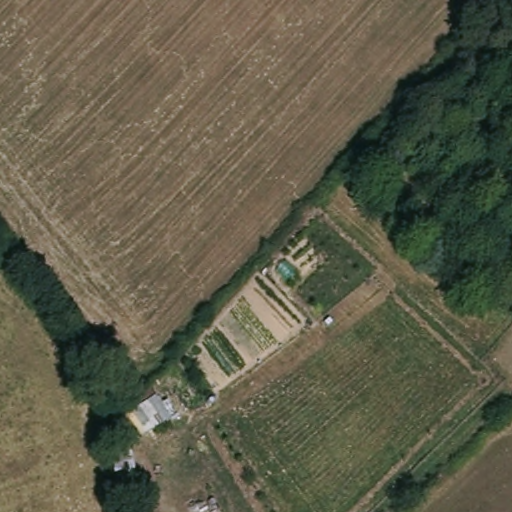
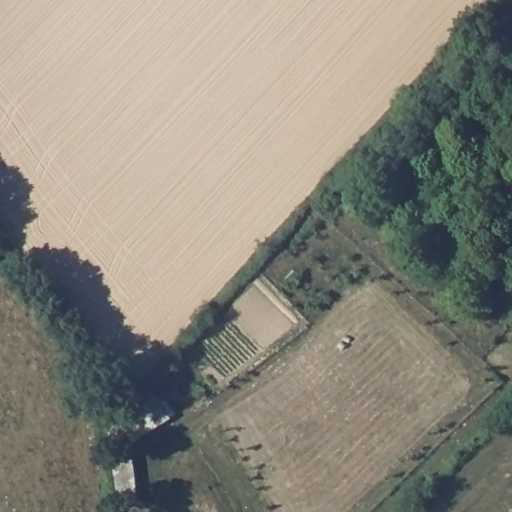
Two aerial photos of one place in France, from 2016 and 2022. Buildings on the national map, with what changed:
unchanged [(132,443),(117,418),(155,396),(172,419),(132,443)]

